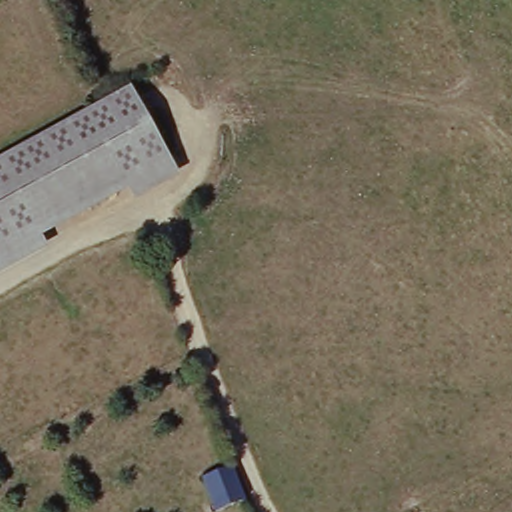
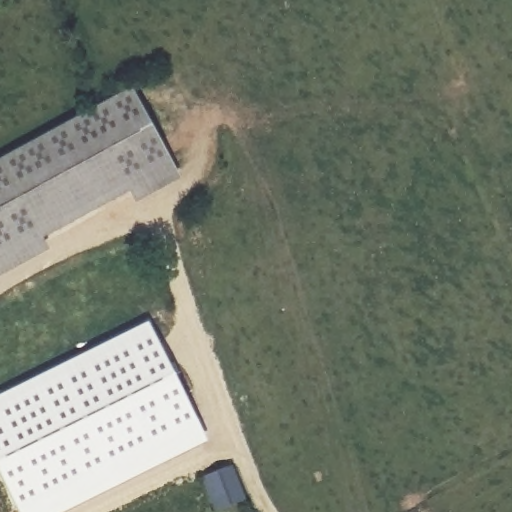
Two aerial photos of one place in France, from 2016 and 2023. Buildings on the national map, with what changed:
unchanged [(180,174),(139,196),(133,187),(45,234),(50,245),(0,273),(0,157),(134,86),(180,174)]
new [(208,438),(60,512),(19,512),(0,473),(0,396),(151,322),(208,438)]
unchanged [(249,498),(220,512),(218,512),(204,481),(232,467),(249,498)]

